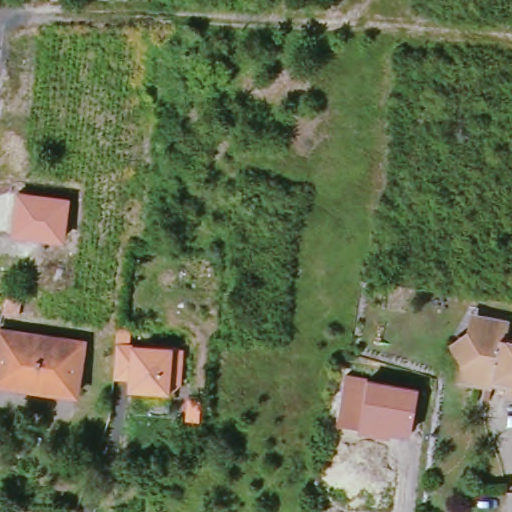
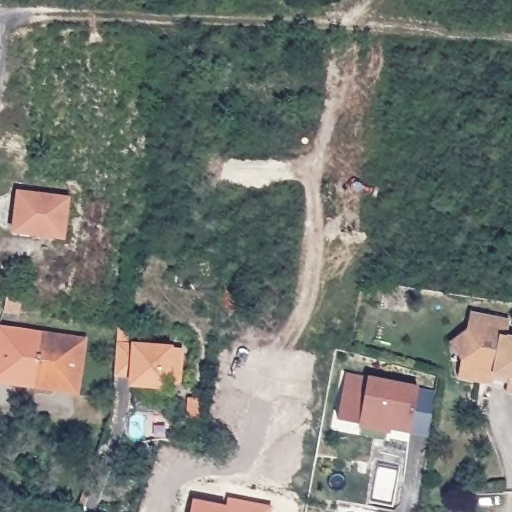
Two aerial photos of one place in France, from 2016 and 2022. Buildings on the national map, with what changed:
unchanged [(68,201),(62,240),(13,233),(18,194),(68,201)]
unchanged [(5,311),(8,296),(21,298),(19,313),(5,311)]
unchanged [(454,340),(469,330),(484,332),(487,315),(511,320),(508,337),(512,338),(512,383),(509,382),(461,374),(465,355),(454,340)]
unchanged [(131,386),(131,382),(115,380),(118,348),(119,333),(130,334),(128,350),(183,355),(180,388),(171,396),(154,394),(136,392),(131,386)]
unchanged [(51,347),(41,392),(35,391),(16,388),(18,382),(0,380),(0,338),(0,334),(42,340),(83,346),(82,352),(51,347)]
unchanged [(51,347),(82,352),(77,390),(53,387),(53,393),(41,392),(51,347)]
unchanged [(371,376),(369,378),(418,387),(409,435),(389,432),(388,436),(356,428),(356,426),(336,421),(344,372),(371,376)]
new [(226,508),(228,500),(271,507),(270,512),(190,512),(192,502),(226,508)]
unchanged [(162,512),(151,512),(152,509),(162,512)]

